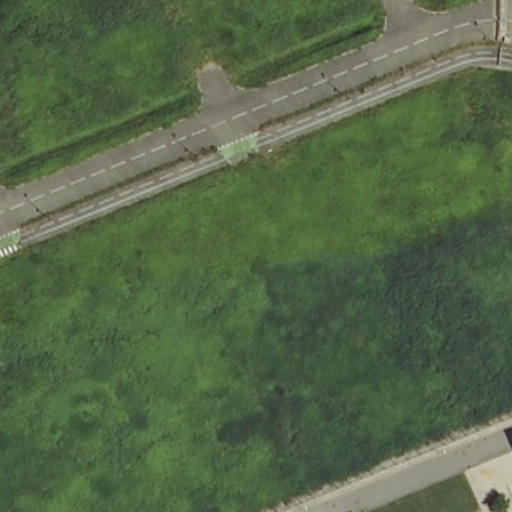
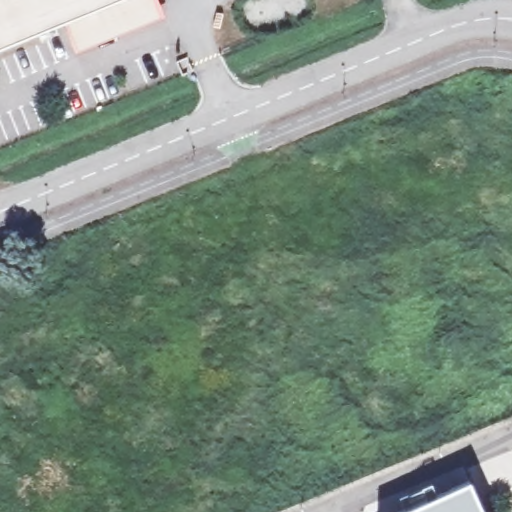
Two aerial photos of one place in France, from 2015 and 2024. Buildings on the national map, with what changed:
new [(0,49),(0,0),(158,0),(165,16),(80,51),(77,53),(65,23),(0,49)]
new [(470,480),(485,512),(400,512),(470,480)]

